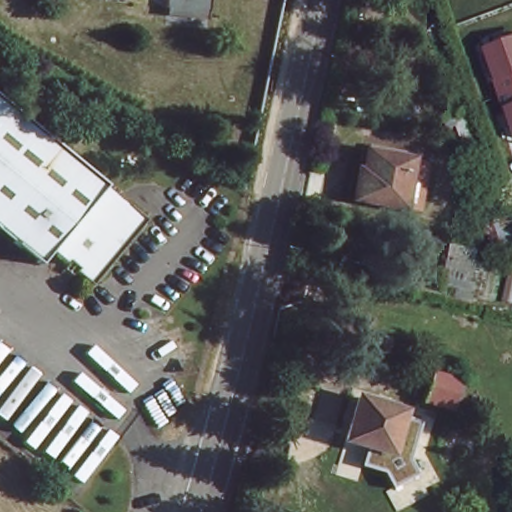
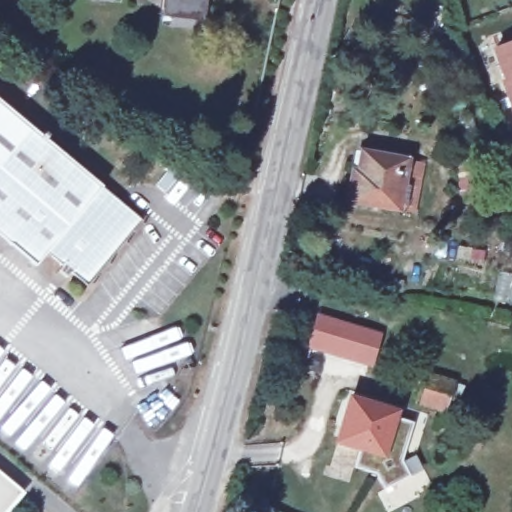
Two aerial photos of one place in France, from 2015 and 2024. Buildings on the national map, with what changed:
unchanged [(206,20),(163,17),(165,0),(208,0),(206,20)]
unchanged [(509,112),(499,82),(504,80),(492,47),(512,40),(512,110),(509,112)]
unchanged [(43,131),(50,137),(45,144),(140,226),(83,290),(69,277),(64,282),(56,274),(60,270),(43,256),(31,268),(0,242),(0,106),(37,137),(43,131)]
unchanged [(409,158),(402,208),(350,199),(359,149),(409,158)]
new [(307,348),(317,314),(383,334),(372,368),(307,348)]
unchanged [(450,384),(446,410),(417,406),(422,379),(450,384)]
unchanged [(388,406),(382,450),(338,445),(344,401),(388,406)]
new [(7,512),(0,512),(0,477),(24,493),(7,512)]

